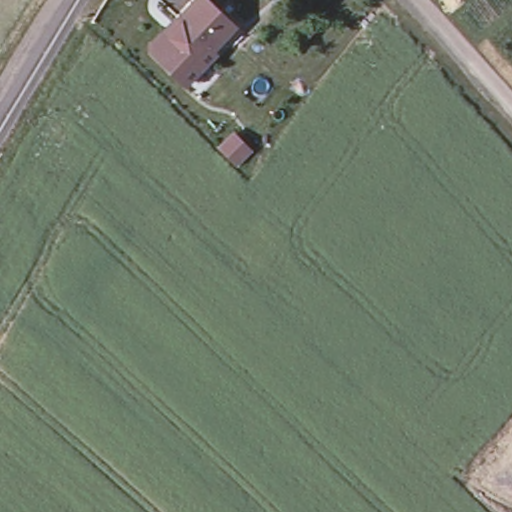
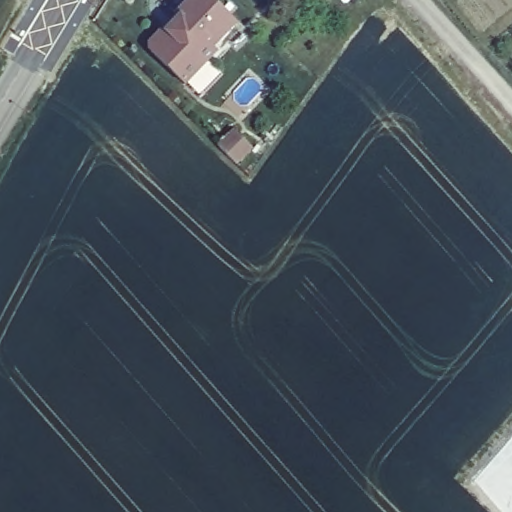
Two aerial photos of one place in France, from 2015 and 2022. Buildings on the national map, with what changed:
unchanged [(234,28),(211,52),(214,55),(183,88),(148,55),(148,47),(158,36),(166,36),(179,23),(175,20),(194,0),(205,0),(234,28)]

